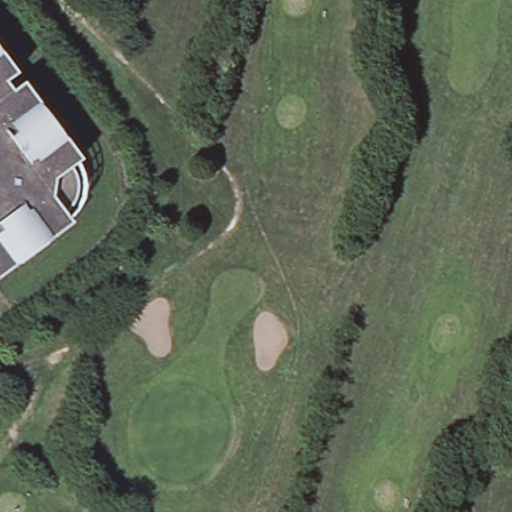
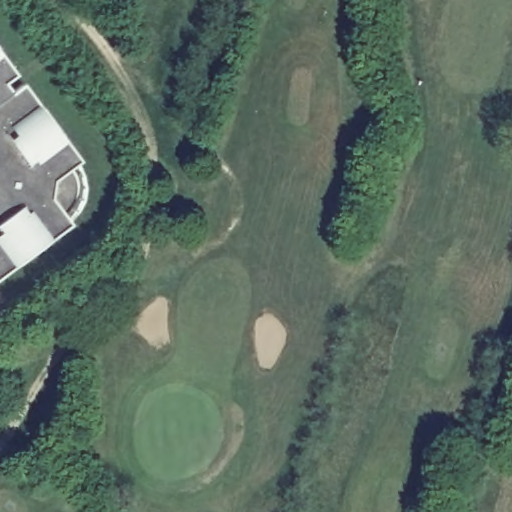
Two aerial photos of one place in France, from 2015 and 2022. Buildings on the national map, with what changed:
unchanged [(65,139),(80,159),(83,184),(78,205),(68,222),(0,274),(0,51),(65,139)]

